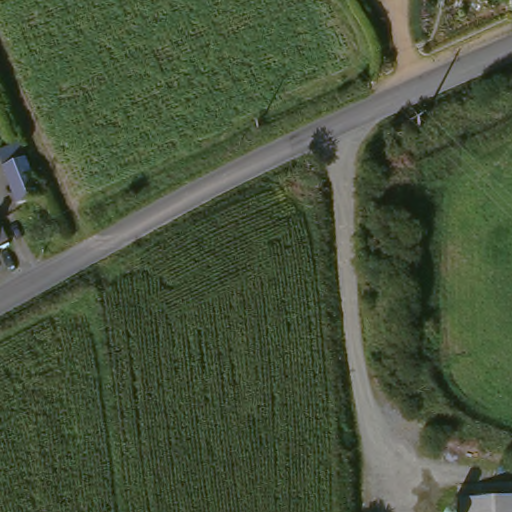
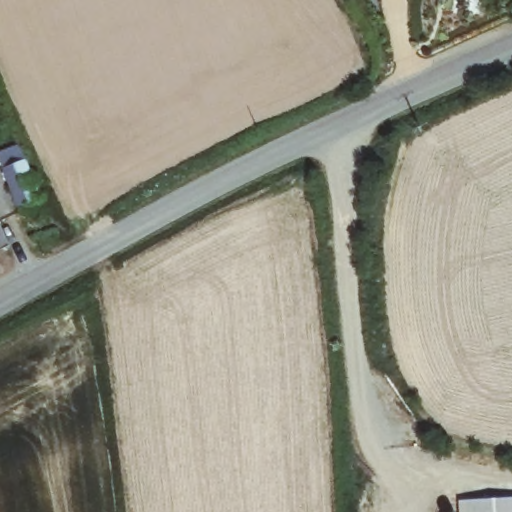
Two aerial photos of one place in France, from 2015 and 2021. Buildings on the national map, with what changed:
unchanged [(37,196),(15,205),(0,166),(0,152),(17,145),(37,196)]
unchanged [(0,243),(3,248),(0,249),(0,243)]
unchanged [(459,499),(512,496),(512,512),(460,512),(459,499)]

